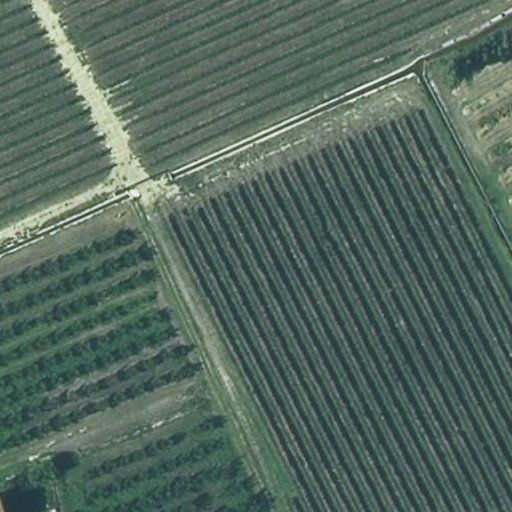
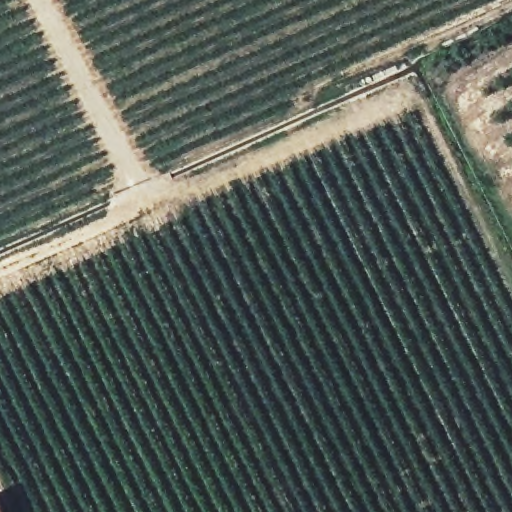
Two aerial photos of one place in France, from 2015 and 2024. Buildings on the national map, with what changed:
unchanged [(3,512),(0,512),(0,502),(3,512)]

